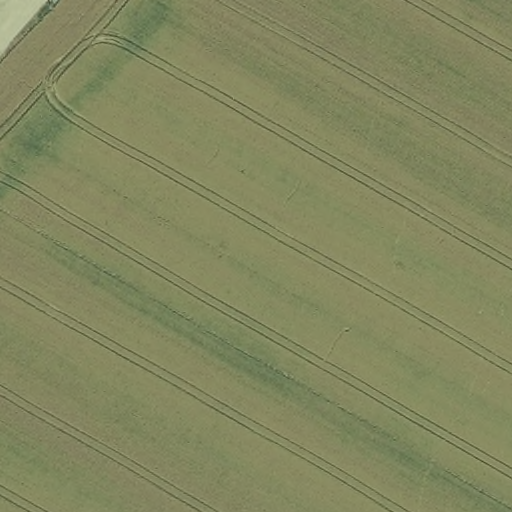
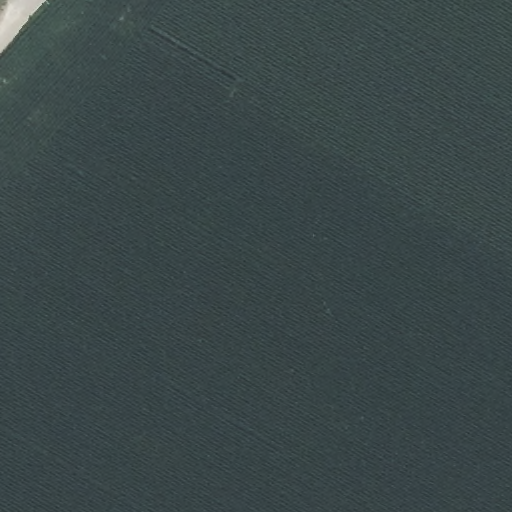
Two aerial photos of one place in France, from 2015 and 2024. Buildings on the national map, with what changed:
[]

